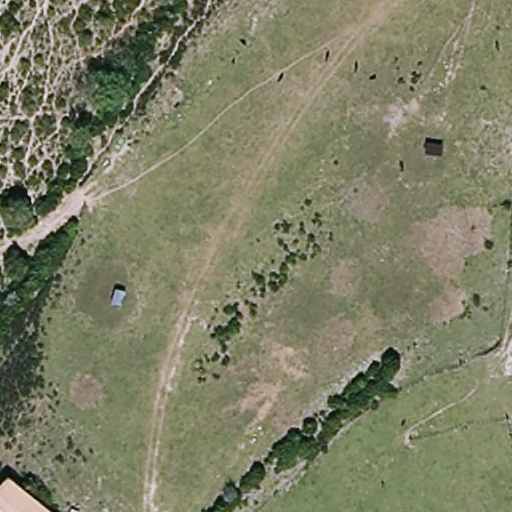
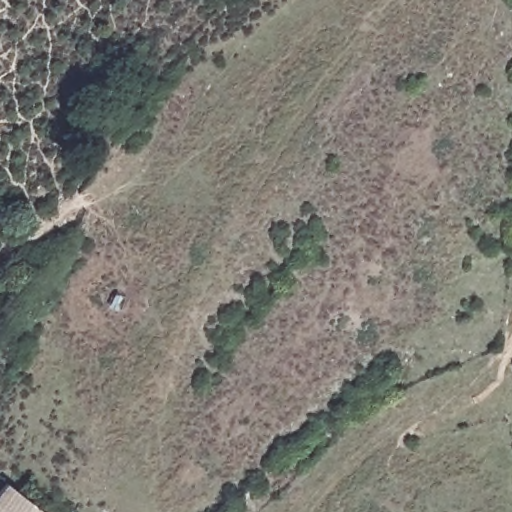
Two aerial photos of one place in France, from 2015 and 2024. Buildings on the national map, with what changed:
unchanged [(47,512),(0,512),(0,490),(8,481),(47,512)]

